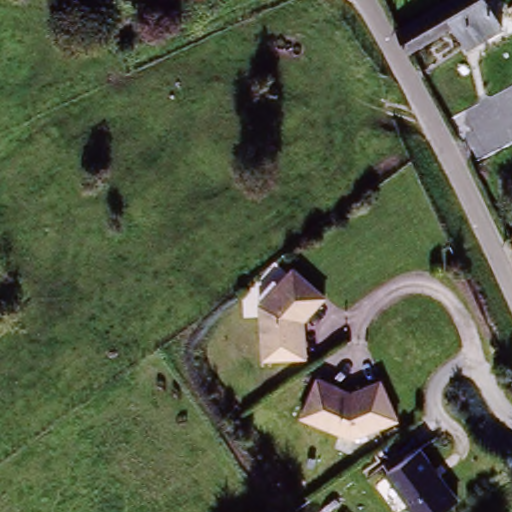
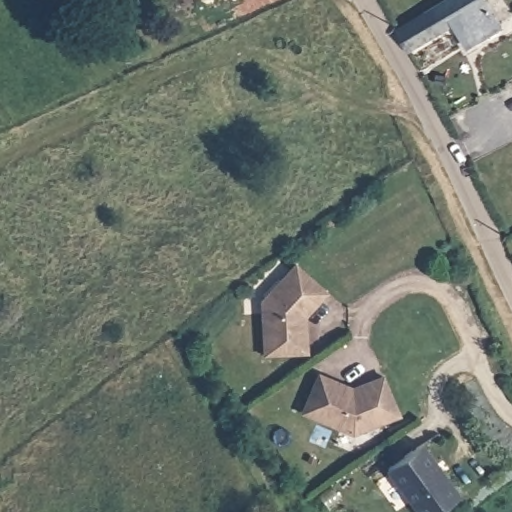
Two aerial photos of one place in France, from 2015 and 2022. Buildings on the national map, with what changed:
unchanged [(463,19),(405,50),(395,30),(450,0),(493,0),(495,2),(505,22),(476,41),(463,19)]
unchanged [(259,350),(250,350),(250,338),(260,338),(257,304),(260,300),(255,294),(270,276),(278,282),(292,267),(323,295),(303,318),(303,358),(260,362),(259,350)]
unchanged [(317,375),(352,391),(379,378),(395,414),(347,437),(296,419),(317,375)]
unchanged [(440,512),(418,512),(386,471),(422,443),(462,495),(440,512)]

